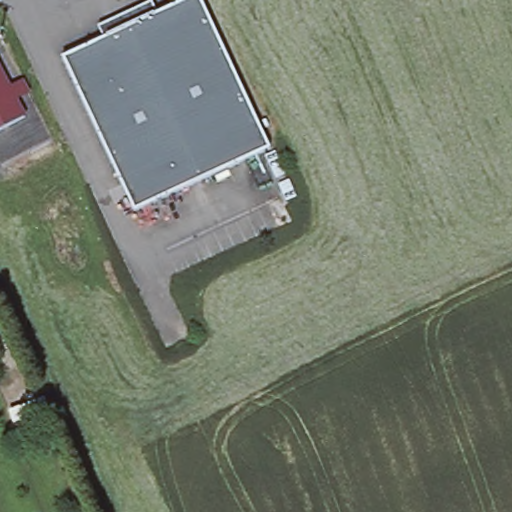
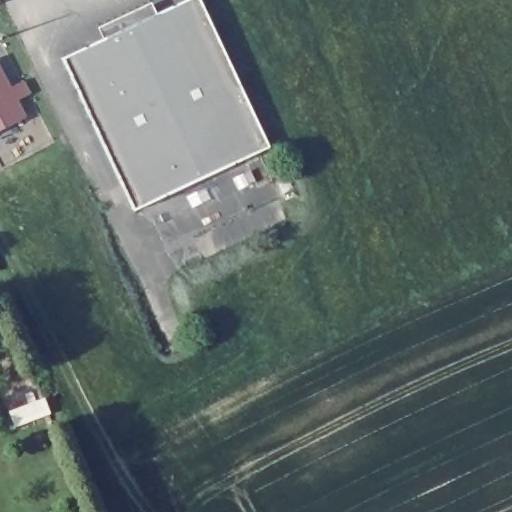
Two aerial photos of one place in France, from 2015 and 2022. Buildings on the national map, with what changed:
unchanged [(200,3),(273,159),(135,213),(62,57),(200,3)]
unchanged [(0,72),(9,86),(22,78),(23,81),(30,91),(17,98),(27,114),(14,123),(0,132),(0,72)]
unchanged [(10,408),(43,395),(49,409),(16,422),(10,408)]

